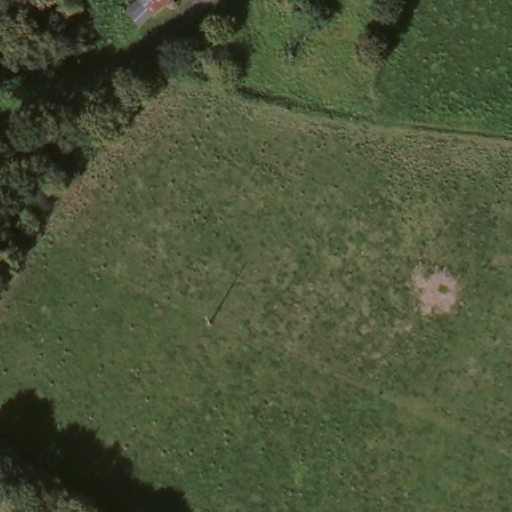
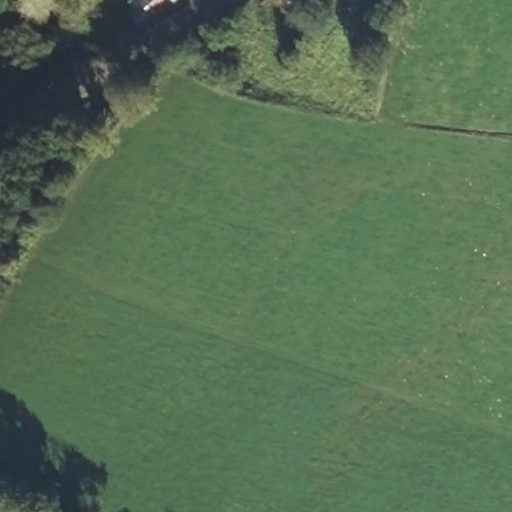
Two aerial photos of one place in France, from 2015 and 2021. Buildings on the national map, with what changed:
unchanged [(132,12),(143,0),(181,0),(146,32),(132,12)]

